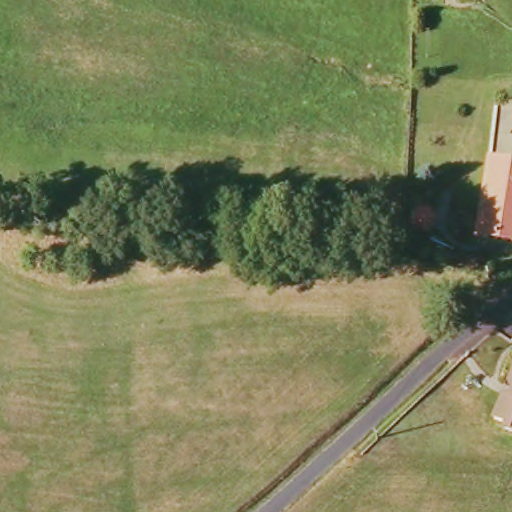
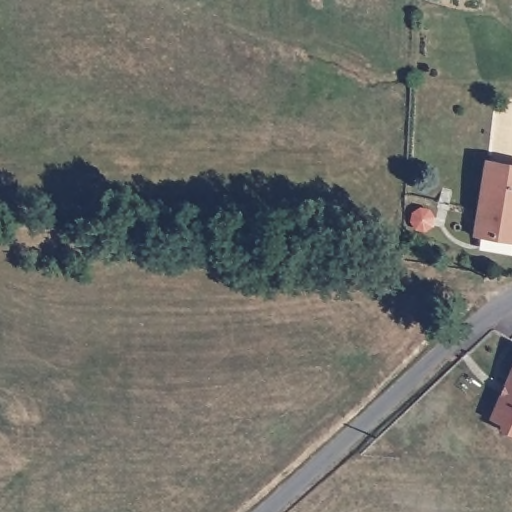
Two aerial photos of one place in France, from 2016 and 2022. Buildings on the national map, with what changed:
unchanged [(479,240),(489,162),(512,167),(512,248),(479,240)]
unchanged [(492,421),(512,376),(512,432),(492,421)]

